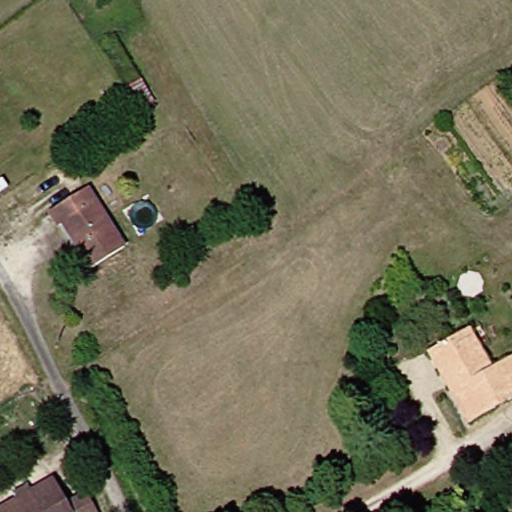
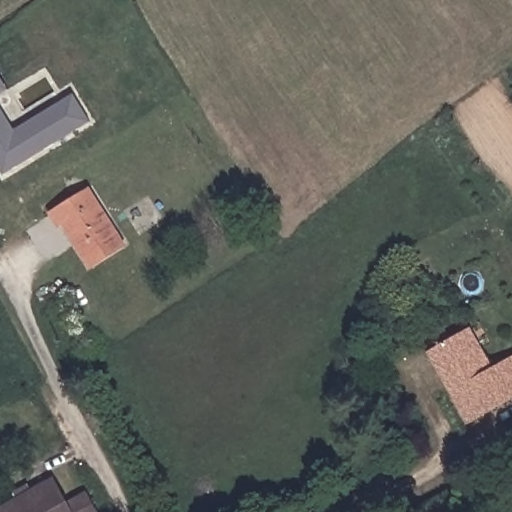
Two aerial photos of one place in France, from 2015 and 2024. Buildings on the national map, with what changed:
new [(0,95),(0,78),(8,90),(0,95)]
demolished [(159,105),(141,116),(127,91),(144,81),(159,105)]
new [(17,134),(52,113),(49,109),(73,94),(90,122),(3,176),(0,171),(0,116),(11,133),(17,134)]
unchanged [(97,268),(69,224),(64,227),(55,212),(83,195),(94,188),(102,202),(131,246),(97,268)]
unchanged [(455,389),(434,352),(440,349),(467,333),(475,328),(485,345),(497,368),(512,360),(512,401),(501,407),(474,423),(455,389)]
unchanged [(64,481),(77,505),(96,494),(105,512),(10,512),(64,481)]

